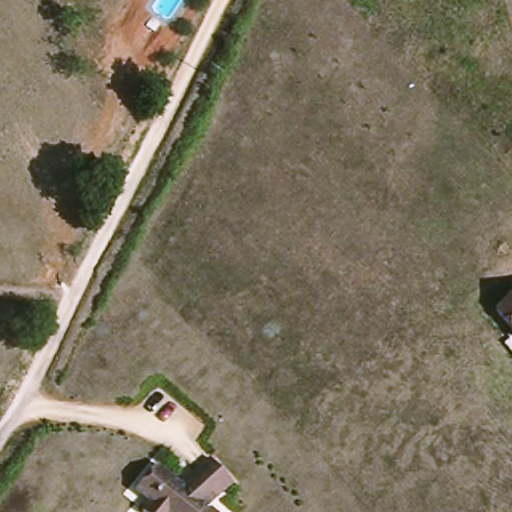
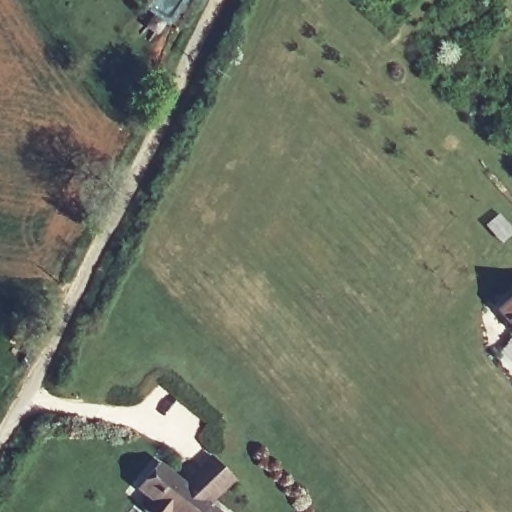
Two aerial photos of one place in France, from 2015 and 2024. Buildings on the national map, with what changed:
unchanged [(512,300),(512,331),(497,313),(512,300)]
unchanged [(136,494),(158,467),(182,487),(197,473),(212,461),(234,485),(219,498),(210,508),(214,512),(146,512),(151,506),(136,494)]

